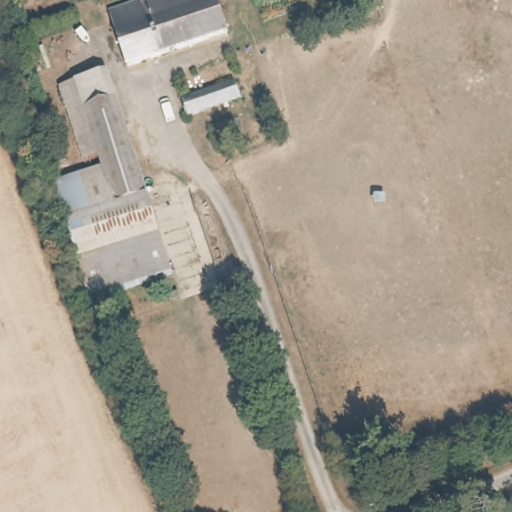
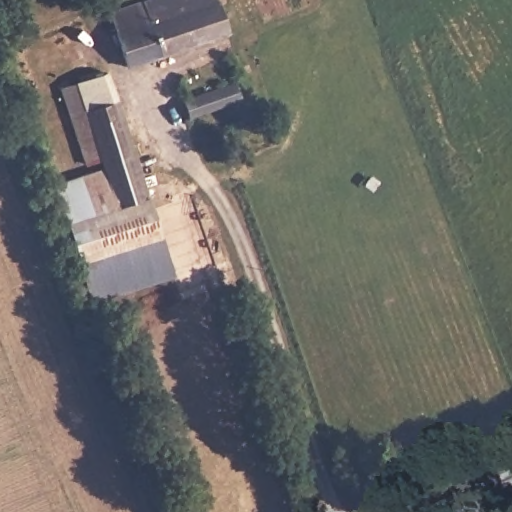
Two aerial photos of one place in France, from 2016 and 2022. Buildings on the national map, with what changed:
unchanged [(232,32),(122,69),(102,9),(128,0),(222,0),(232,32)]
unchanged [(57,86),(107,69),(135,149),(101,160),(84,167),(57,86)]
unchanged [(240,100),(187,118),(183,105),(235,86),(240,100)]
unchanged [(104,169),(101,160),(135,149),(151,195),(70,224),(57,185),(104,169)]
unchanged [(70,224),(151,195),(165,237),(177,273),(97,301),(85,265),(70,224)]

